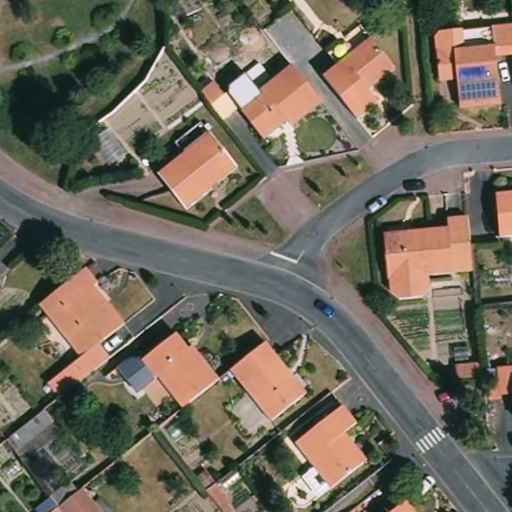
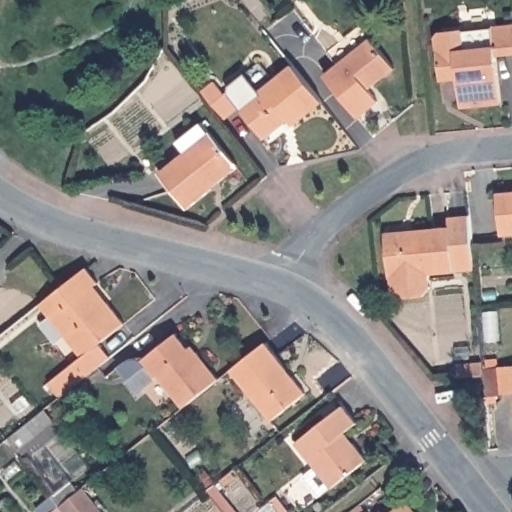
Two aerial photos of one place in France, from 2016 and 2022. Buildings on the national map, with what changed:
unchanged [(441,33),(512,26),(512,58),(496,59),(499,103),(460,108),(455,80),(438,82),(435,40),(441,33)]
unchanged [(372,40),(396,69),(371,88),(380,101),(358,117),(325,76),(372,40)]
unchanged [(294,126),(290,121),(265,139),(241,107),(297,67),(326,102),(294,126)]
unchanged [(211,85),(221,99),(207,109),(197,96),(211,85)]
unchanged [(211,132),(237,169),(188,205),(162,169),(211,132)]
unchanged [(512,228),(498,230),(495,189),(512,188),(512,228)]
unchanged [(476,268),(392,274),(390,230),(452,225),(451,217),(471,215),(476,268)]
unchanged [(91,267),(101,279),(93,286),(107,302),(110,301),(127,323),(101,343),(112,357),(67,394),(64,397),(52,382),(84,355),(44,306),(64,289),(91,267)]
unchanged [(162,370),(158,372),(144,355),(179,327),(196,348),(201,345),(224,375),(188,404),(162,370)]
unchanged [(305,392),(268,422),(229,372),(267,342),(305,392)]
unchanged [(455,367),(479,365),(480,377),(455,380),(455,367)]
unchanged [(500,368),(512,368),(512,394),(502,395),(500,368)]
unchanged [(308,472),(319,463),(299,437),(348,398),(362,417),(350,427),(371,455),(334,482),(333,481),(322,490),(308,472)]
unchanged [(42,420),(50,431),(29,447),(27,444),(20,436),(42,420)]
unchanged [(67,512),(63,507),(60,505),(53,496),(72,481),(79,490),(84,486),(106,512),(67,512)]
unchanged [(414,512),(388,512),(404,500),(414,512)]
unchanged [(366,512),(349,512),(360,503),(366,512)]
unchanged [(67,512),(57,512),(63,507),(67,512)]

